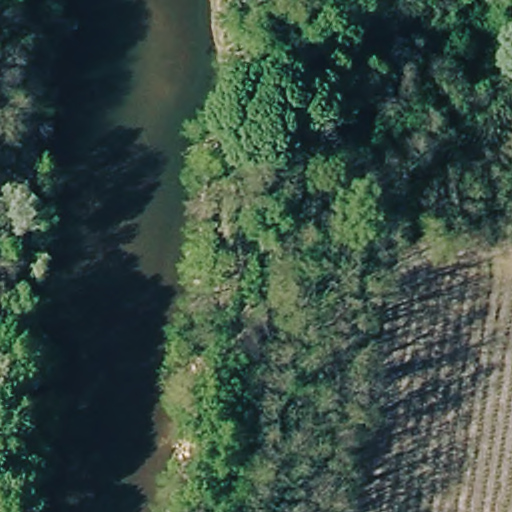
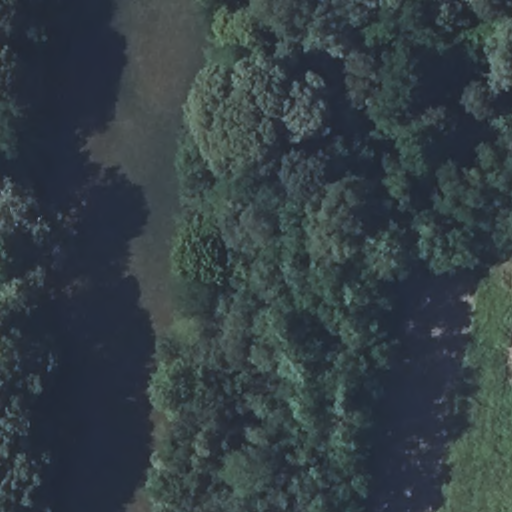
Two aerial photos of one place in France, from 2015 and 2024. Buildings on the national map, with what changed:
[]

